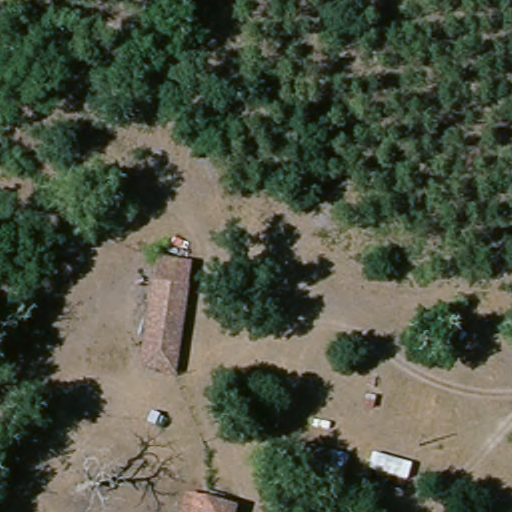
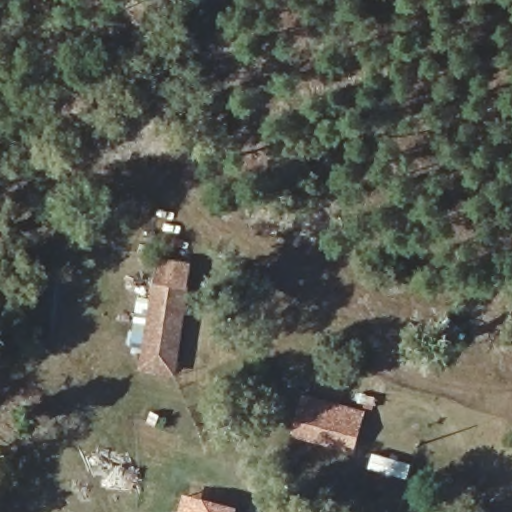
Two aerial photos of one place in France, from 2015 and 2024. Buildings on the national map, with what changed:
unchanged [(144,365),(154,285),(157,255),(189,261),(185,290),(175,369),(144,365)]
new [(290,436),(302,395),(364,412),(353,452),(290,436)]
demolished [(311,445),(355,460),(346,487),(299,472),(311,445)]
unchanged [(235,512),(182,512),(190,490),(237,507),(235,512)]

